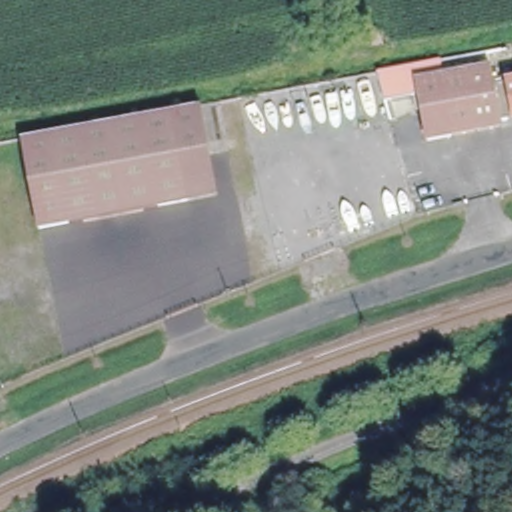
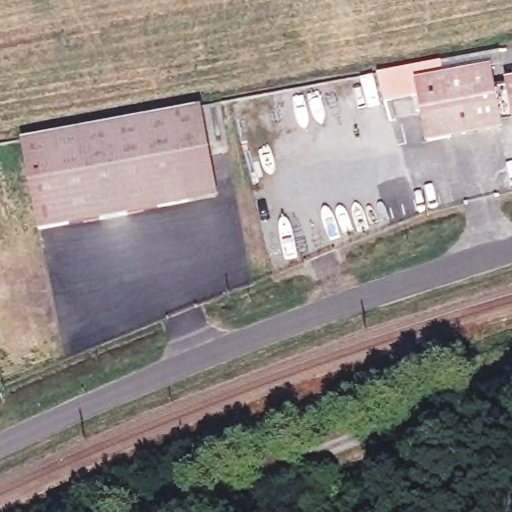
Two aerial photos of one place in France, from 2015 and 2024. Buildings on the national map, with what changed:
unchanged [(395,121),(390,103),(382,74),(442,62),(445,78),(414,86),(418,98),(395,102),(400,119),(395,121)]
unchanged [(498,85),(512,83),(512,121),(505,123),(506,128),(432,141),(426,111),(421,111),(418,98),(414,86),(445,78),(494,69),(498,85)]
unchanged [(167,115),(203,108),(219,197),(184,204),(167,115)]
unchanged [(184,204),(38,231),(21,141),(97,127),(167,115),(184,204)]

